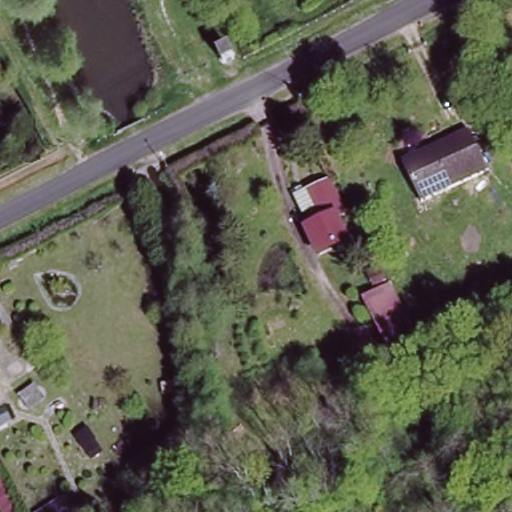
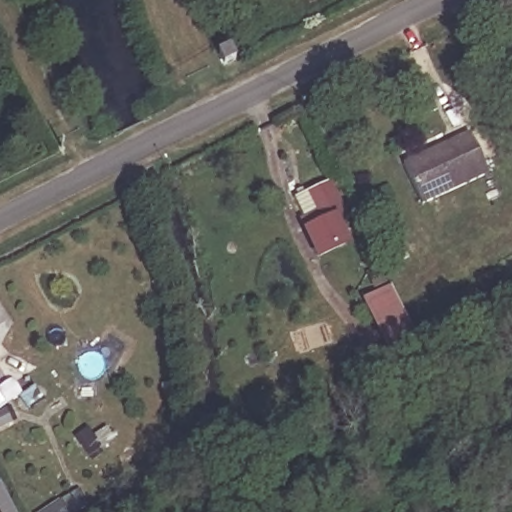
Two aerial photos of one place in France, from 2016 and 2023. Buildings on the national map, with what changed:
unchanged [(490,173),(425,205),(407,167),(472,135),(490,173)]
unchanged [(333,221),(345,242),(319,256),(301,222),(291,202),(328,184),(331,189),(345,215),(333,221)]
unchanged [(375,276),(379,285),(369,291),(365,282),(375,276)]
unchanged [(422,352),(396,366),(362,300),(388,287),(422,352)]

